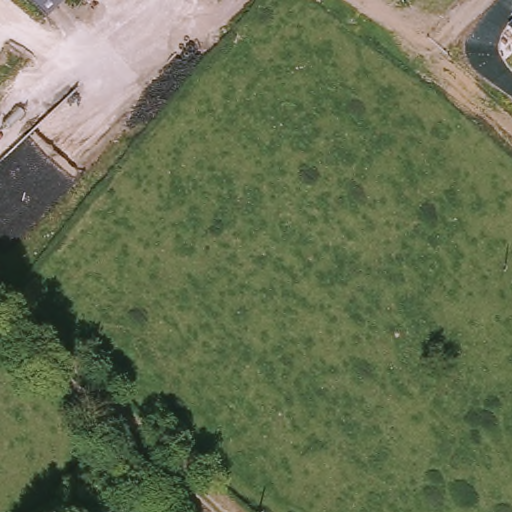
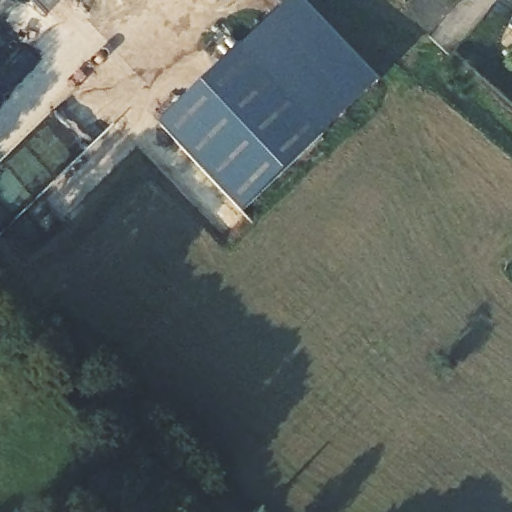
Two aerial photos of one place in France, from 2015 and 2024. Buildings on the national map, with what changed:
unchanged [(31,0),(63,0),(46,16),(31,0)]
new [(242,212),(158,124),(292,0),(300,0),(378,83),(242,212)]

